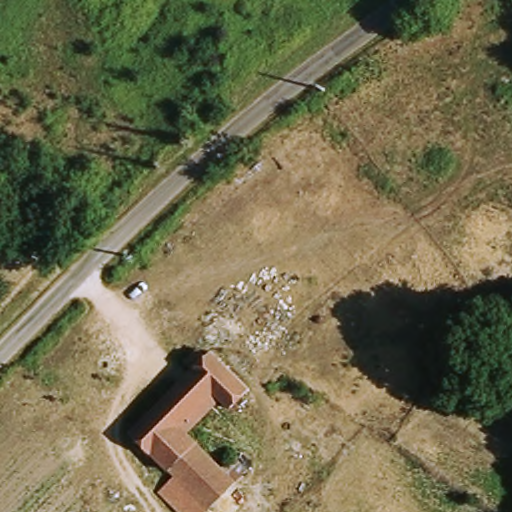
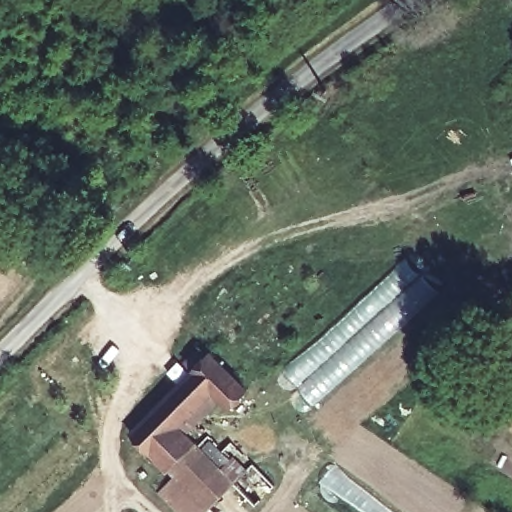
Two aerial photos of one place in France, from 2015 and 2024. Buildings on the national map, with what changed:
new [(342,317),(405,258),(437,293),(312,406),(282,370),(342,317)]
unchanged [(231,482),(203,510),(201,512),(175,512),(155,493),(173,477),(127,432),(208,352),(244,389),(226,408),(219,401),(185,435),(217,468),(228,458),(242,472),(231,482)]

